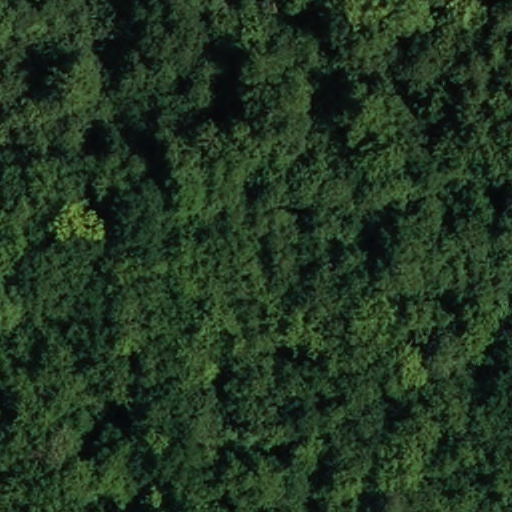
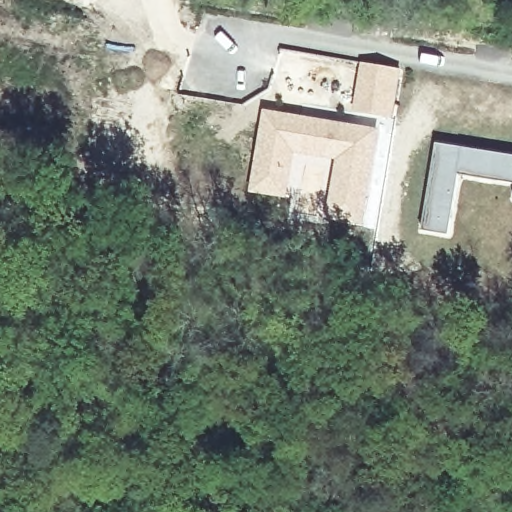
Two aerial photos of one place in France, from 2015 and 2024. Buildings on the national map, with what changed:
new [(360,61),(402,68),(393,117),(352,111),(360,61)]
new [(263,108),(379,128),(365,226),(323,219),(325,207),(335,160),(296,153),(292,193),(291,199),(250,192),(263,108)]
new [(296,153),(335,160),(325,207),(322,207),(323,199),(292,193),(296,153)]

